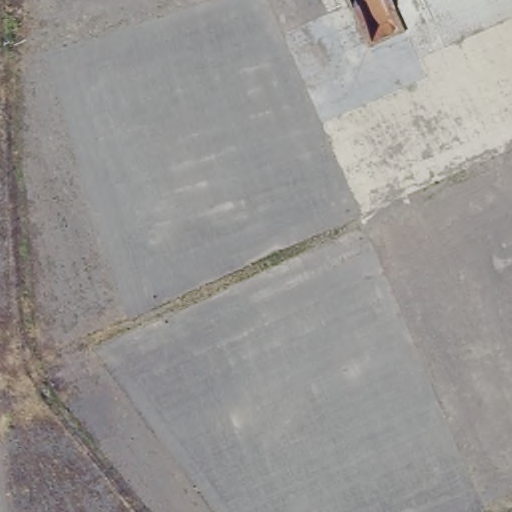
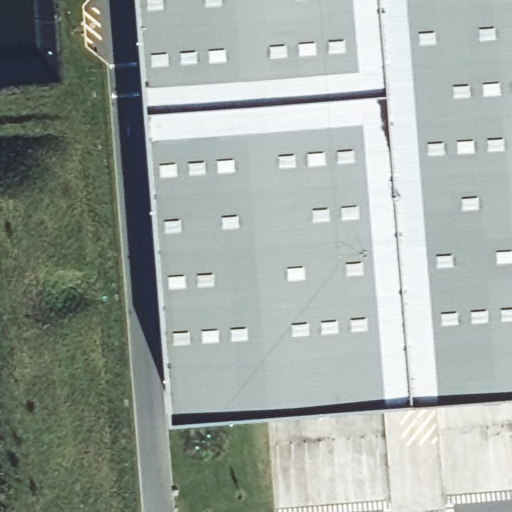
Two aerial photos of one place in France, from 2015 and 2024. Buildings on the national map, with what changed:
new [(512,395),(155,423),(160,419),(126,0),(512,0),(512,395)]

